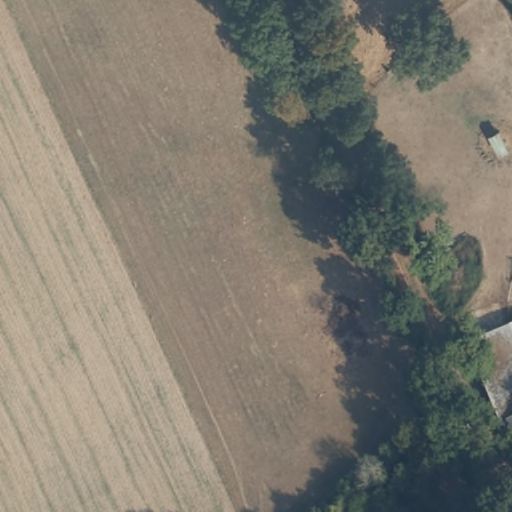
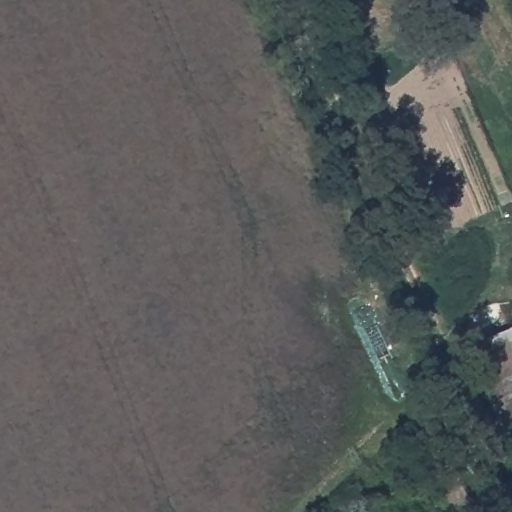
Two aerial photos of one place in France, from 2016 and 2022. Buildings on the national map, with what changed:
unchanged [(512,324),(512,403),(502,407),(471,342),(512,324)]
unchanged [(511,432),(502,407),(512,403),(512,431),(511,432)]

